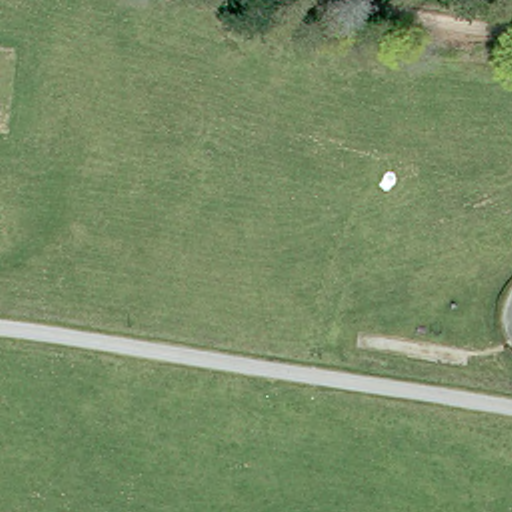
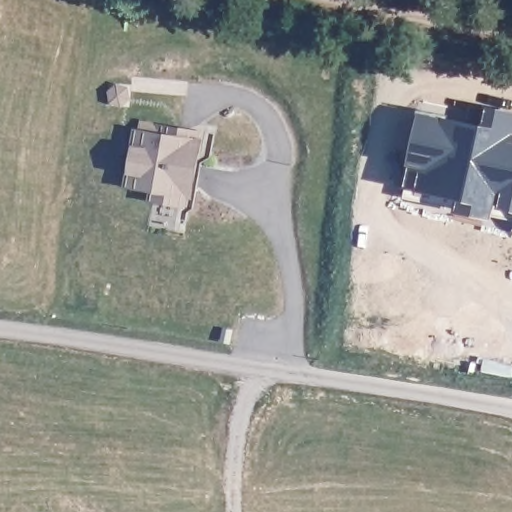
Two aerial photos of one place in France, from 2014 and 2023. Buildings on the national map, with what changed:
new [(419,110),(483,123),(487,105),(512,111),(512,208),(499,205),(499,202),(497,201),(494,216),(457,209),(459,197),(404,185),(419,110)]
new [(193,198),(189,198),(188,209),(148,202),(150,192),(125,188),(137,119),(204,129),(193,198)]

